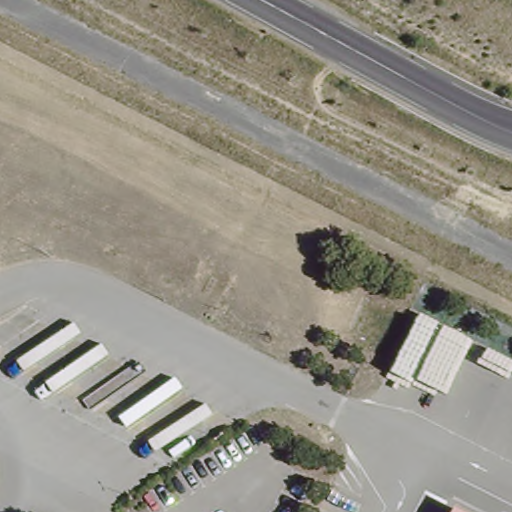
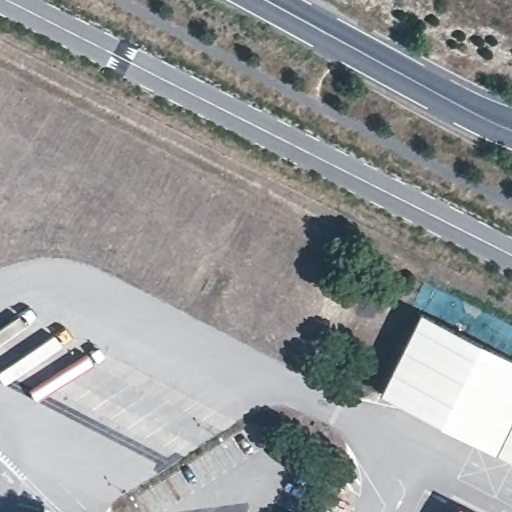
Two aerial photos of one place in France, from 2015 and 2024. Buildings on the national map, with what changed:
new [(418,311),(512,359),(512,462),(377,393),(418,311)]

